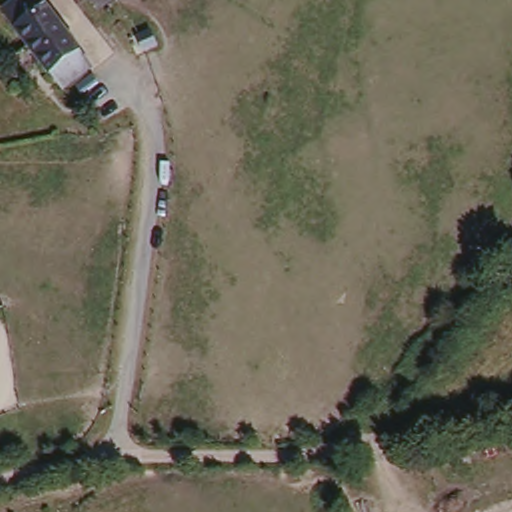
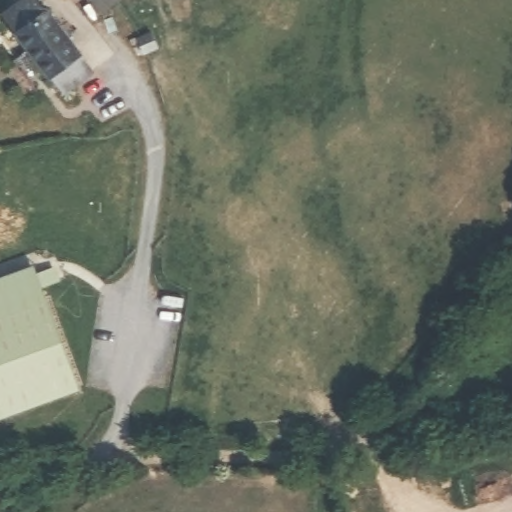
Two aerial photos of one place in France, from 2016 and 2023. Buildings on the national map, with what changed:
unchanged [(43,15),(48,12),(83,57),(79,61),(91,75),(70,93),(55,79),(50,81),(16,37),(20,32),(6,15),(24,0),(30,0),(43,15)]
new [(54,272),(59,286),(44,291),(46,295),(0,312),(0,281),(36,268),(39,277),(54,272)]
new [(81,393),(0,423),(0,312),(46,295),(81,393)]

